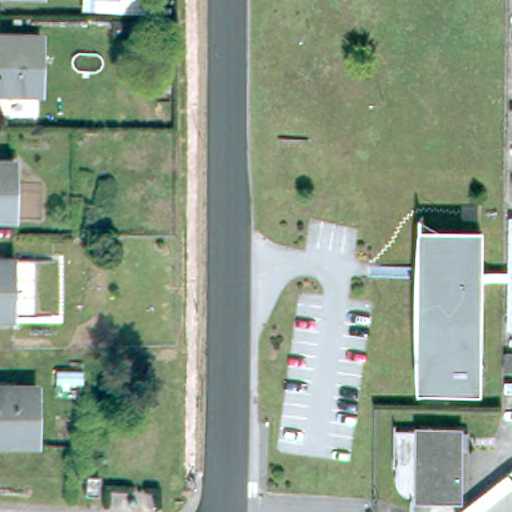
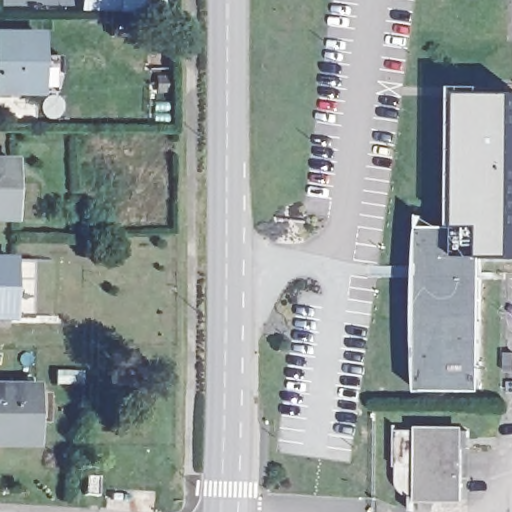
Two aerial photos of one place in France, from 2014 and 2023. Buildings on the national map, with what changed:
unchanged [(40,92),(0,92),(0,35),(40,36),(40,92)]
new [(512,94),(512,257),(477,257),(477,227),(462,227),(462,94),(512,94)]
unchanged [(7,224),(0,224),(0,166),(9,167),(7,224)]
unchanged [(477,227),(476,382),(416,382),(417,227),(477,227)]
unchanged [(7,327),(0,326),(0,269),(7,270),(7,327)]
unchanged [(507,352),(512,352),(512,372),(507,372),(507,352)]
unchanged [(35,443),(0,443),(0,386),(35,387),(35,443)]
unchanged [(419,497),(419,493),(408,493),(407,492),(405,492),(404,491),(402,490),(402,488),(401,487),(400,486),(399,485),(398,483),(397,482),(397,480),(397,478),(397,465),(394,465),(395,427),(420,428),(420,427),(462,428),(470,428),(470,447),(462,447),(461,497),(419,497)]
unchanged [(99,477),(98,496),(86,495),(87,476),(99,477)]

